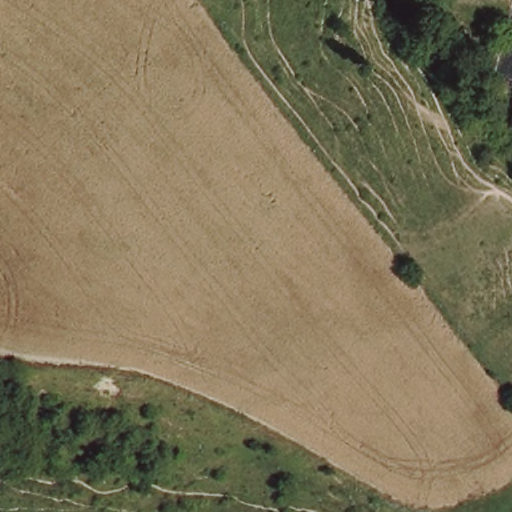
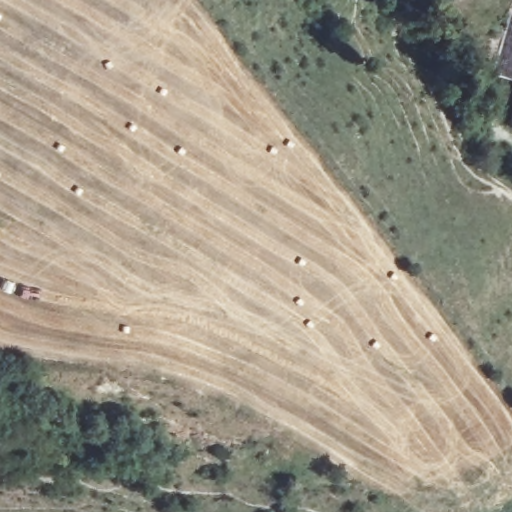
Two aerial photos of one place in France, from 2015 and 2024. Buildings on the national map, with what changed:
[]

